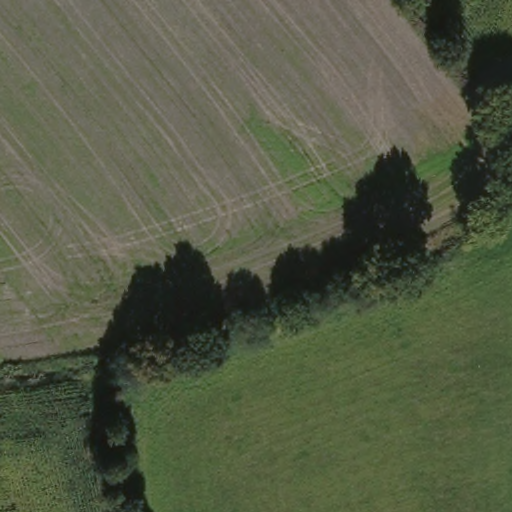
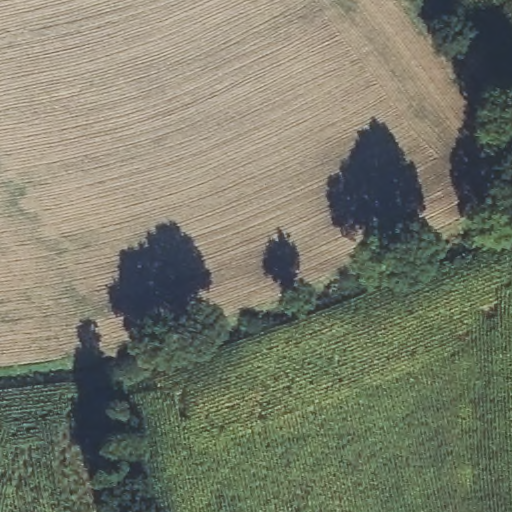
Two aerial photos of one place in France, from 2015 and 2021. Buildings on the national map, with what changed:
[]

